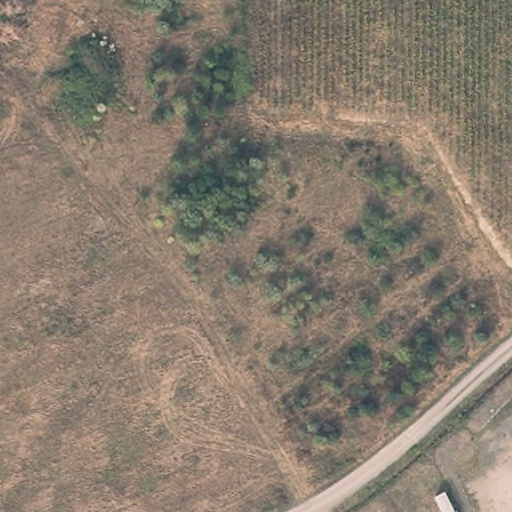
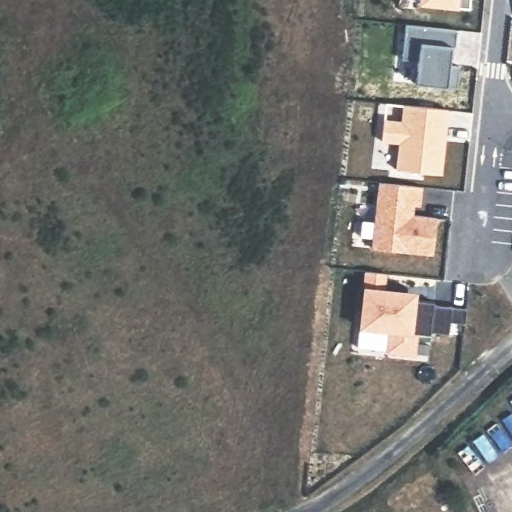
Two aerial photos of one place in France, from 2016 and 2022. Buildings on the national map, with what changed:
new [(468,6),(457,5),(417,1),(418,0),(469,0),(468,6)]
new [(452,44),(449,63),(458,65),(456,87),(447,85),(414,81),(416,59),(401,57),(405,23),(456,29),(452,44)]
new [(397,142),(382,140),(385,116),(400,118),(401,103),(447,108),(440,173),(395,167),(397,142)]
new [(413,213),(435,215),(430,254),(371,247),(377,180),(422,185),(420,204),(415,204),(413,213)]
new [(357,329),(361,283),(362,270),(386,272),(386,286),(417,289),(415,298),(433,300),(432,304),(465,307),(464,322),(450,321),(448,333),(431,331),(431,334),(418,332),(416,355),(386,352),(388,331),(357,329)]

